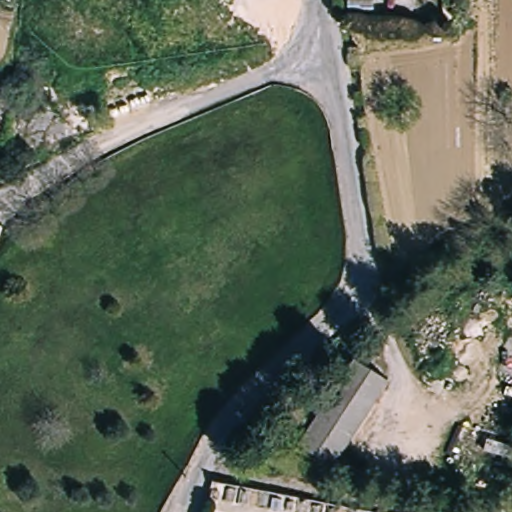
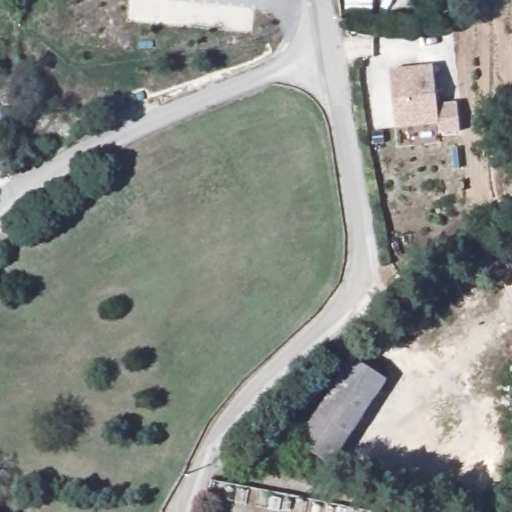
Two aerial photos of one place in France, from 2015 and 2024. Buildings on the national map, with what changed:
new [(434,64),(438,104),(457,102),(459,130),(438,132),(438,122),(394,125),(389,67),(434,64)]
unchanged [(294,447),(351,363),(384,385),(328,468),(294,447)]

